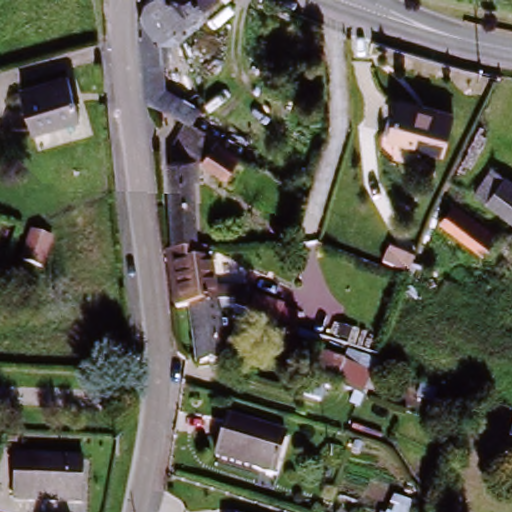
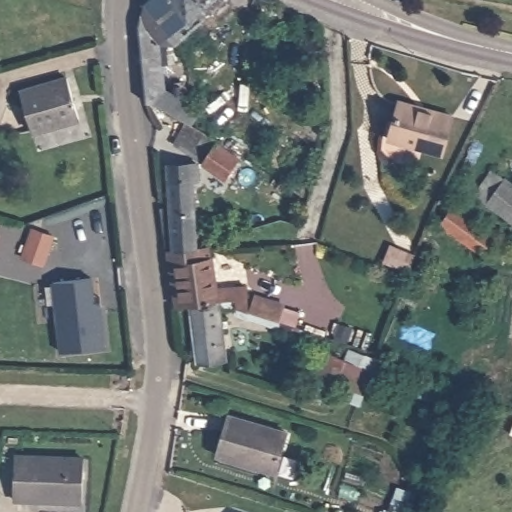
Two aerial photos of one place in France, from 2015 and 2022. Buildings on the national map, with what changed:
unchanged [(160,0),(252,0),(237,6),(229,1),(208,10),(211,25),(194,30),(182,41),(162,35),(140,36),(142,13),(160,0)]
unchanged [(140,36),(162,35),(162,95),(195,113),(187,129),(175,122),(145,105),(144,85),(142,60),(140,36)]
unchanged [(80,125),(33,137),(22,97),(70,85),(80,125)]
unchanged [(403,130),(414,103),(460,126),(448,150),(403,130)]
unchanged [(220,180),(194,163),(163,142),(175,122),(207,144),(233,161),(220,180)]
unchanged [(167,172),(190,170),(196,246),(172,247),(167,172)]
unchanged [(480,195),(494,173),(512,186),(512,220),(480,195)]
unchanged [(507,252),(492,269),(442,230),(457,212),(507,252)]
unchanged [(32,235),(45,240),(39,261),(25,257),(32,235)]
unchanged [(402,297),(410,285),(375,265),(385,247),(419,263),(417,268),(435,276),(424,306),(402,297)]
unchanged [(217,300),(188,305),(182,255),(197,253),(197,261),(214,257),(217,300)]
new [(95,285),(109,355),(62,356),(54,286),(95,285)]
unchanged [(217,300),(224,348),(194,352),(188,305),(217,300)]
unchanged [(305,381),(314,355),(364,370),(356,395),(305,381)]
unchanged [(224,457),(230,419),(289,430),(285,449),(280,470),(224,457)]
unchanged [(15,462),(84,465),(82,507),(14,504),(15,462)]

